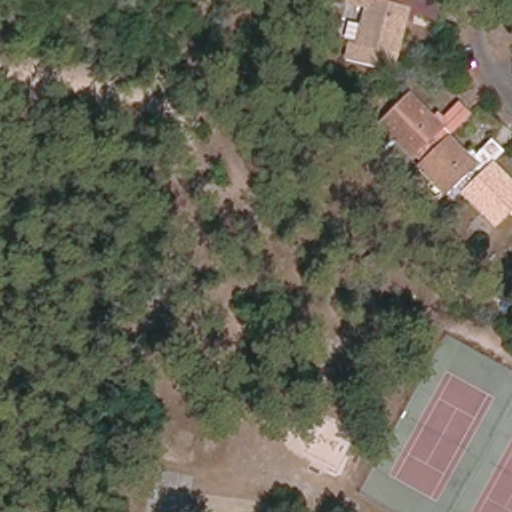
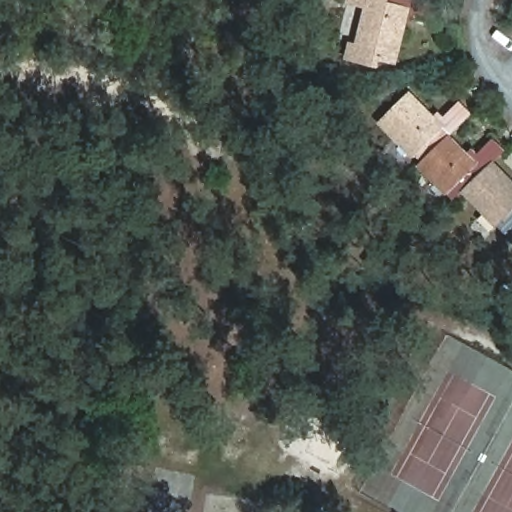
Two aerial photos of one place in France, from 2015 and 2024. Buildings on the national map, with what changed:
unchanged [(346,58),(350,41),(357,43),(365,5),(346,1),(346,0),(424,0),(437,3),(433,19),(417,16),(415,23),(403,20),(393,62),(376,58),(375,65),(346,58)]
unchanged [(461,193),(452,205),(380,122),(415,93),(436,115),(440,110),(445,114),(462,102),(472,112),(452,134),(470,153),(473,149),(477,154),(494,140),(506,151),(496,161),(512,175),(512,228),(507,233),(461,193)]

